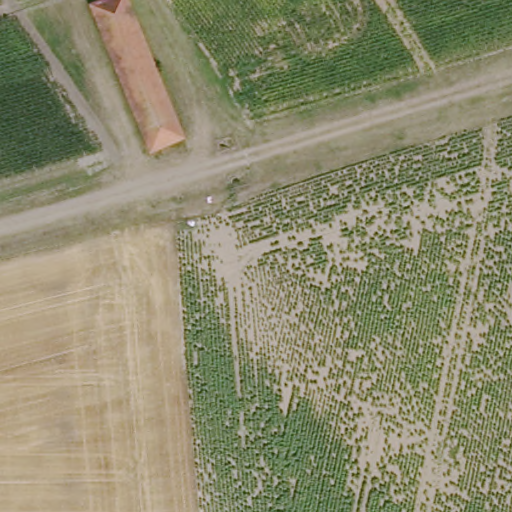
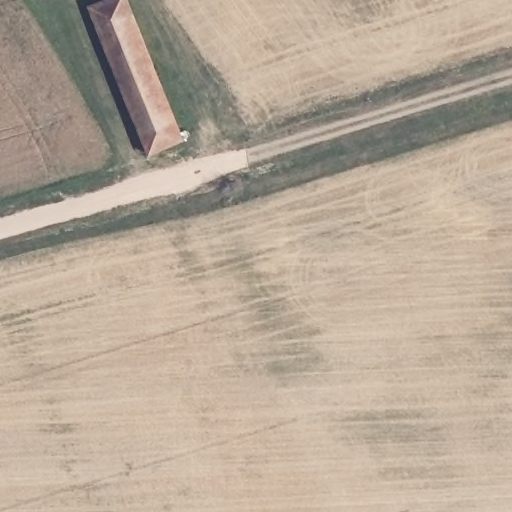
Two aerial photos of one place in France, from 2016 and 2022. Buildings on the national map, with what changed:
unchanged [(129,0),(185,138),(152,151),(92,4),(101,0),(129,0)]

